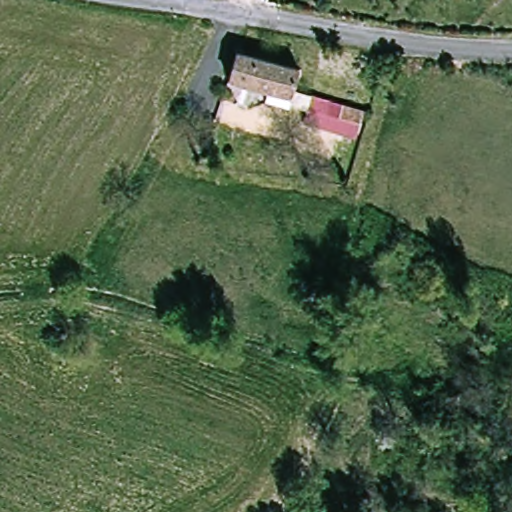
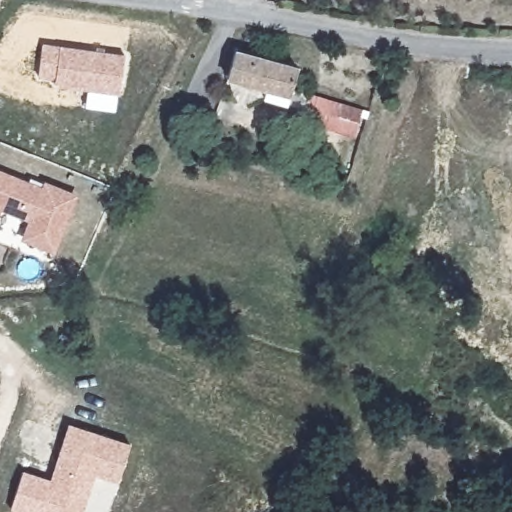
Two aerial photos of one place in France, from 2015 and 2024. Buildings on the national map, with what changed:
new [(121,93),(55,84),(56,75),(37,73),(41,50),(53,52),(55,47),(126,57),(121,93)]
unchanged [(300,68),(295,89),(372,112),(370,118),(365,116),(358,136),(305,121),(309,109),(267,98),(270,88),(231,78),(239,52),(300,68)]
new [(41,186),(44,180),(79,194),(55,253),(20,239),(28,221),(1,210),(0,213),(0,170),(41,186)]
new [(83,512),(19,512),(11,509),(23,470),(50,479),(68,423),(130,443),(117,481),(94,475),(83,512)]

